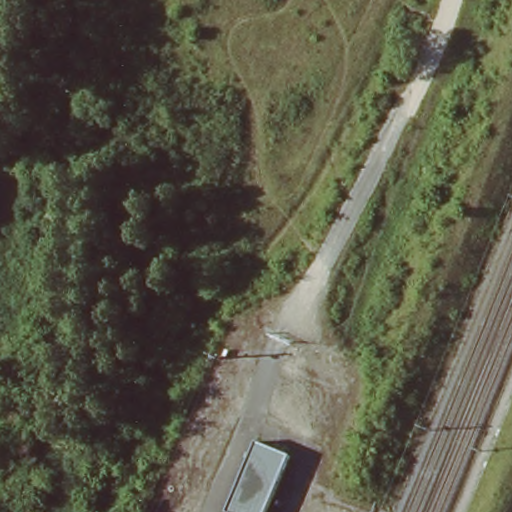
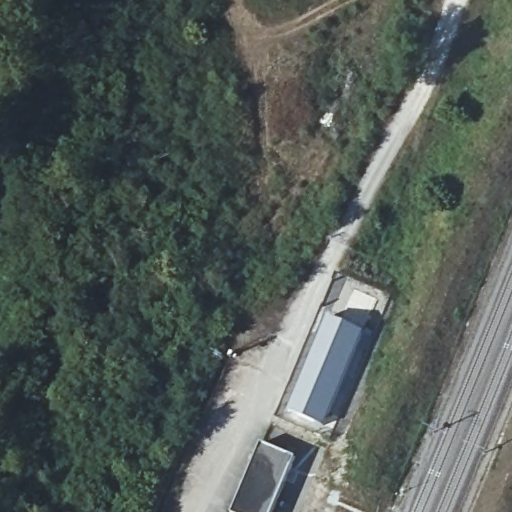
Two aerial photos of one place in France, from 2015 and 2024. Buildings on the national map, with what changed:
new [(326,315),(364,330),(344,380),(323,426),(285,411),(326,315)]
unchanged [(261,445),(298,461),(273,512),(235,512),(261,445)]

